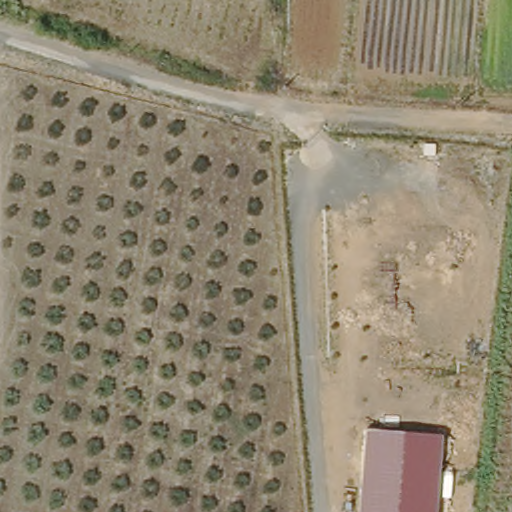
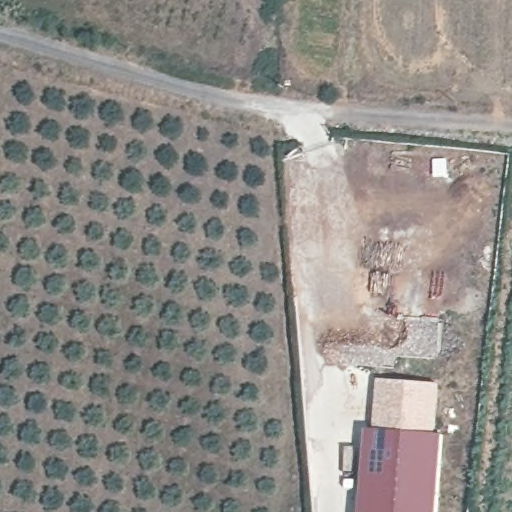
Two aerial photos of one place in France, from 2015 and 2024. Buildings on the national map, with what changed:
new [(439,385),(438,391),(441,391),(438,435),(370,429),(373,392),(375,393),(376,379),(439,385)]
unchanged [(444,435),(438,512),(359,512),(367,429),(444,435)]

